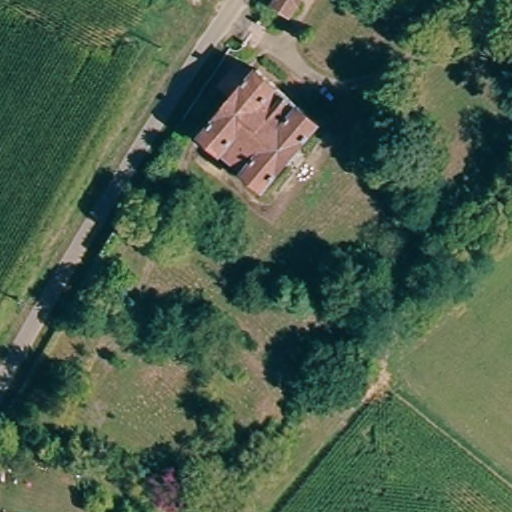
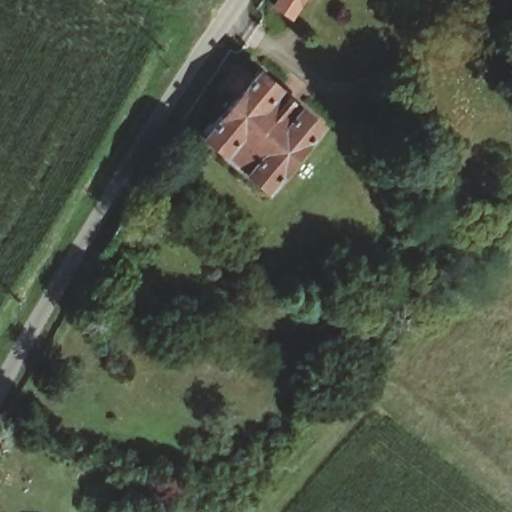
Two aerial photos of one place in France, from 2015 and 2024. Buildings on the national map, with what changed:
unchanged [(289,15),(273,5),(275,0),(298,0),(289,15)]
unchanged [(270,191),(205,140),(236,101),(222,89),(239,69),(255,80),(258,76),(321,126),(270,191)]

